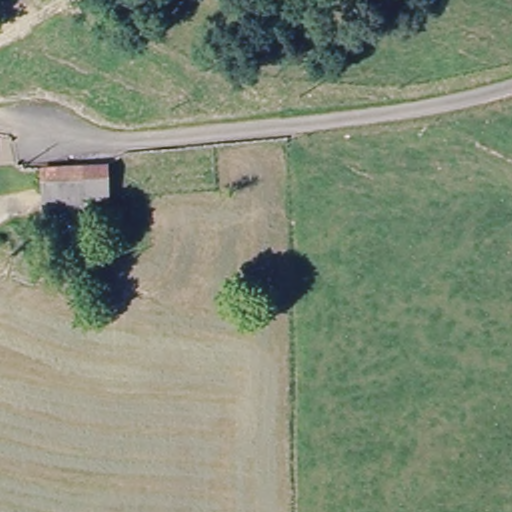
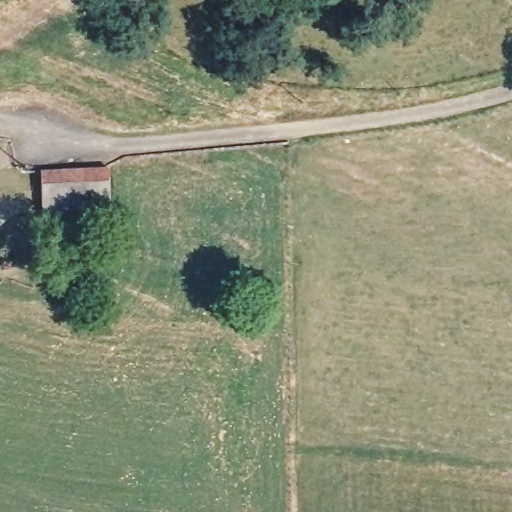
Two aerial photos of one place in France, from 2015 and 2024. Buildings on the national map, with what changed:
unchanged [(49,225),(45,173),(81,170),(107,167),(112,202),(85,205),(87,220),(49,225)]

